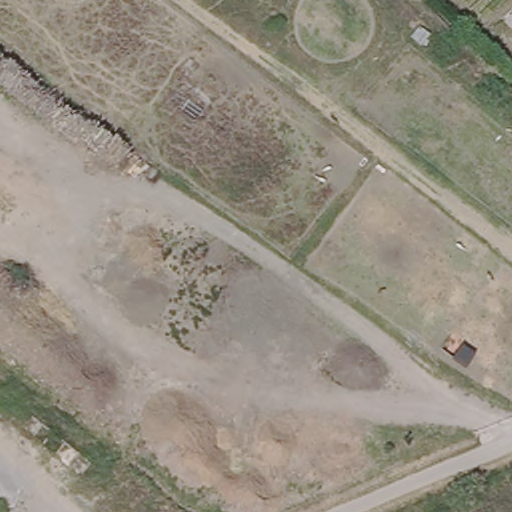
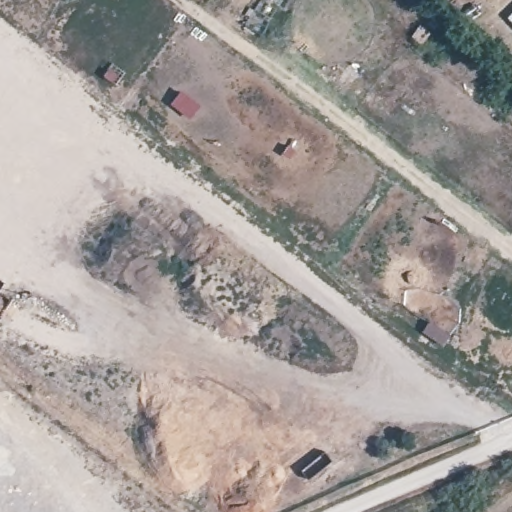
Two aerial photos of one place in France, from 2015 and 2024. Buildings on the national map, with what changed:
unchanged [(500,12),(512,1),(512,24),(500,12)]

